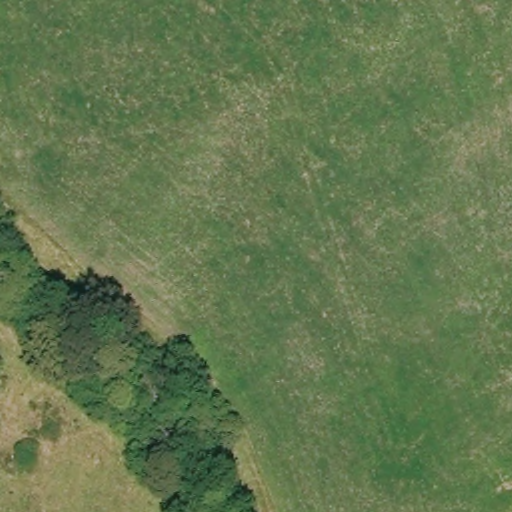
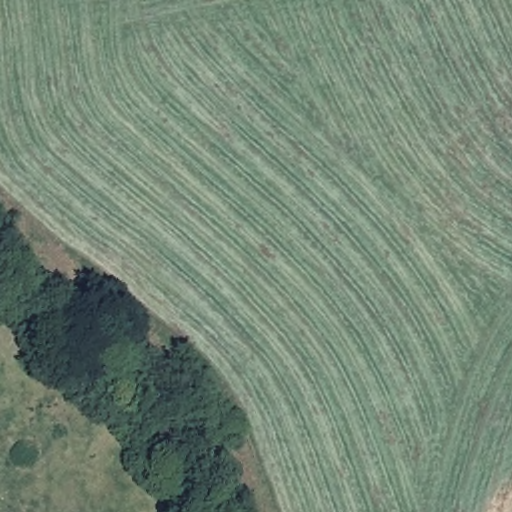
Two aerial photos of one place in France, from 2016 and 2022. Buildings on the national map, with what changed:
[]

